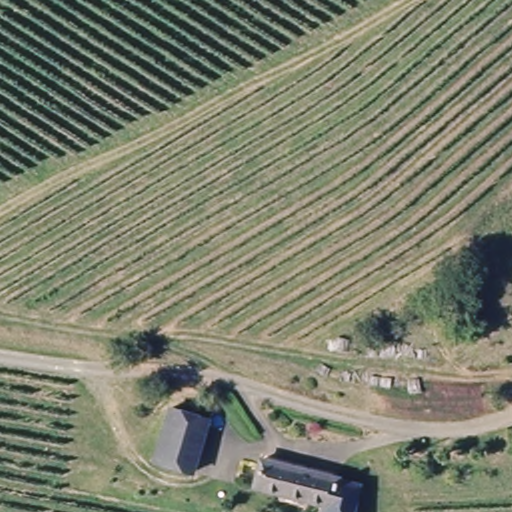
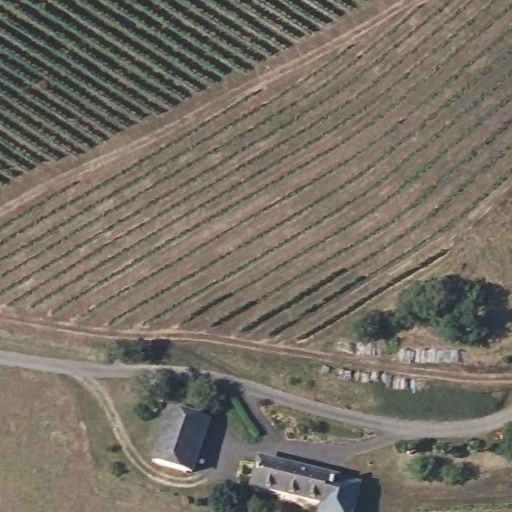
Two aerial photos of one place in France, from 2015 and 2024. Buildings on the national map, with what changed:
unchanged [(171,411),(209,424),(192,477),(152,465),(171,411)]
unchanged [(242,454),(320,474),(319,475),(333,479),(341,481),(333,512),(303,512),(306,499),(236,482),(242,454)]

